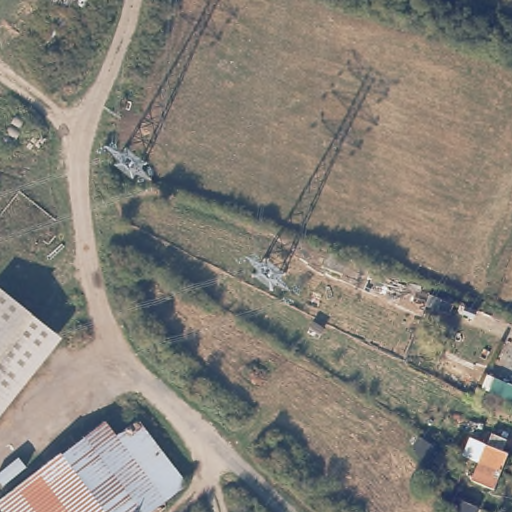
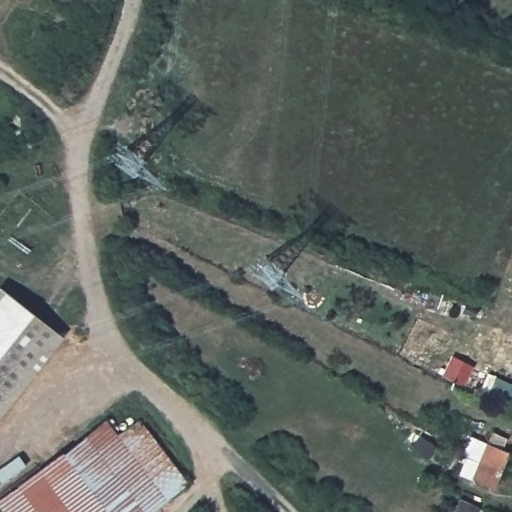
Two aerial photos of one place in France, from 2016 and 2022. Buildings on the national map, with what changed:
unchanged [(56,322),(0,398),(0,286),(3,282),(56,322)]
unchanged [(10,496),(101,423),(112,437),(131,420),(186,486),(153,512),(0,512),(0,504),(10,496)]
unchanged [(470,483),(477,466),(488,437),(505,445),(501,456),(507,458),(500,475),(493,492),(470,483)]

